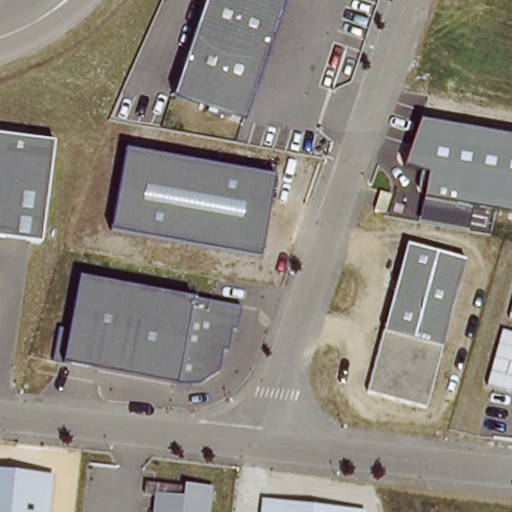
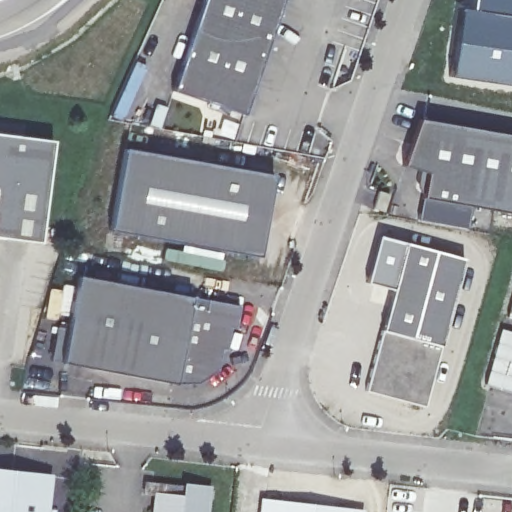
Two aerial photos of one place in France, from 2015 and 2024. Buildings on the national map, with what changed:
unchanged [(245,117),(173,95),(204,0),(284,0),(245,117)]
new [(456,6),(469,8),(470,0),(512,0),(512,86),(444,77),(456,6)]
unchanged [(418,120),(512,136),(512,213),(421,198),(427,174),(404,164),(418,120)]
unchanged [(0,240),(0,136),(56,142),(43,245),(0,240)]
unchanged [(261,261),(112,233),(128,148),(274,176),(261,261)]
unchanged [(446,344),(386,329),(409,245),(469,262),(446,344)]
unchanged [(220,370),(202,383),(67,362),(80,280),(244,310),(220,370)]
new [(508,318),(512,302),(512,319),(508,318)]
unchanged [(426,405),(369,390),(386,329),(446,344),(426,405)]
new [(501,330),(512,333),(512,393),(486,385),(501,330)]
unchanged [(52,512),(0,512),(0,468),(56,473),(52,512)]
unchanged [(156,512),(159,485),(180,488),(183,483),(213,485),(211,512),(156,512)]
unchanged [(365,512),(262,512),(264,498),(365,510),(365,512)]

